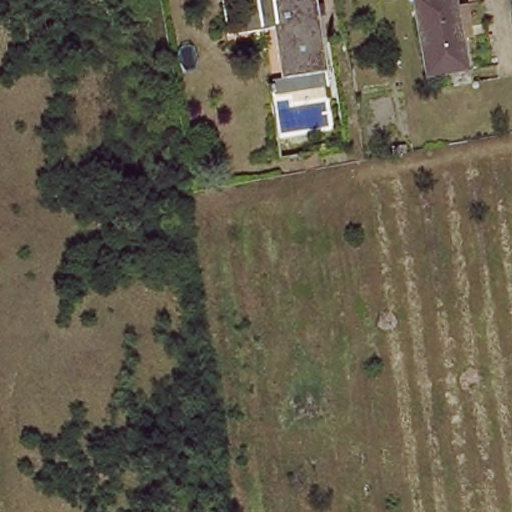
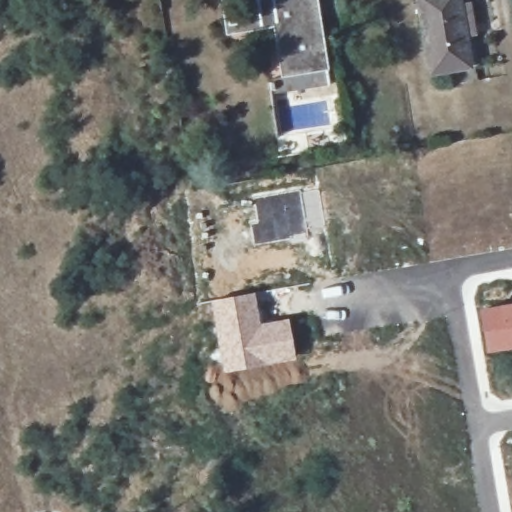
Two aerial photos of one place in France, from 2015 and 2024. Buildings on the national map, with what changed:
unchanged [(285,80),(275,29),(247,33),(243,0),(317,0),(328,75),(285,80)]
unchanged [(433,75),(420,0),(460,0),(471,69),(433,75)]
new [(255,291),(261,322),(288,318),(296,361),(221,373),(209,299),(255,291)]
new [(512,302),(512,350),(486,355),(478,309),(512,302)]

